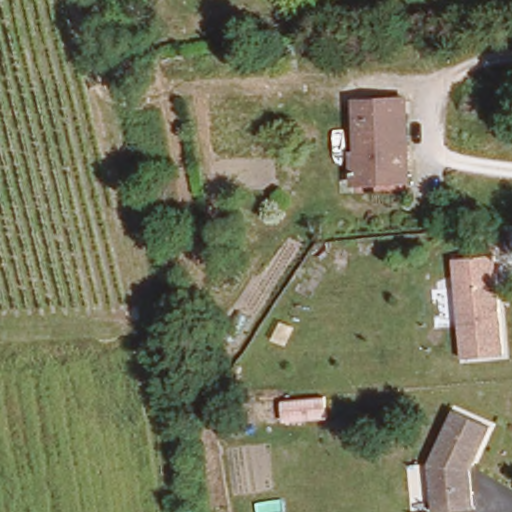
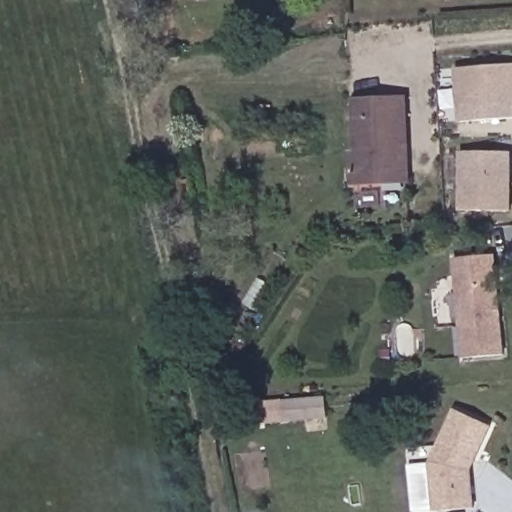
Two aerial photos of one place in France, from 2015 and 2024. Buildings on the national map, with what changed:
new [(455,69),(512,65),(512,118),(459,122),(455,69)]
unchanged [(347,102),(403,98),(408,177),(350,178),(347,102)]
new [(460,152),(512,152),(512,211),(460,212),(460,152)]
new [(454,286),(451,259),(495,254),(498,281),(454,286)]
unchanged [(498,281),(506,356),(462,359),(454,286),(498,281)]
new [(327,418),(283,422),(281,400),(325,397),(327,418)]
unchanged [(464,471),(466,510),(428,511),(425,463),(452,411),(486,428),(464,471)]

